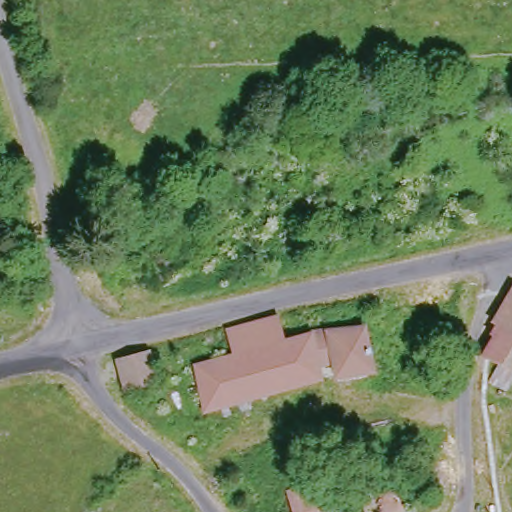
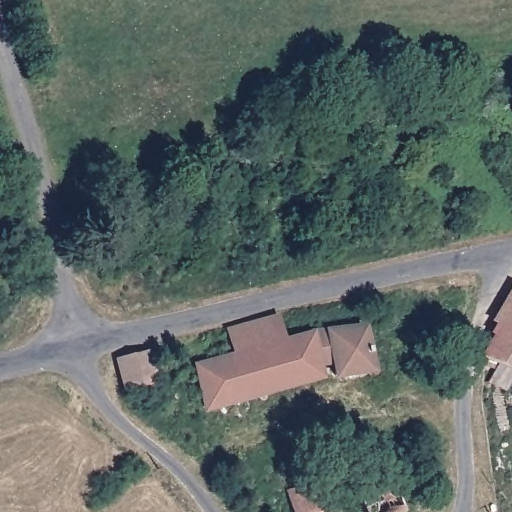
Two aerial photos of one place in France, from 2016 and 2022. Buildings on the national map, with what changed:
unchanged [(497,325),(492,323),(512,291),(512,369),(484,356),(497,325)]
unchanged [(283,336),(306,332),(314,381),(205,411),(196,365),(234,352),(227,327),(274,316),(283,336)]
unchanged [(327,328),(360,324),(369,374),(314,381),(306,332),(327,328)]
unchanged [(155,379),(124,389),(114,357),(144,347),(155,379)]
unchanged [(395,512),(370,512),(357,485),(384,471),(404,508),(395,512)]
unchanged [(283,490),(318,485),(325,509),(326,512),(291,512),(283,490)]

